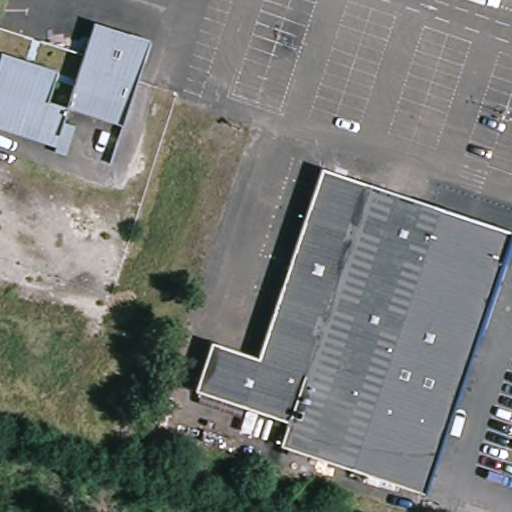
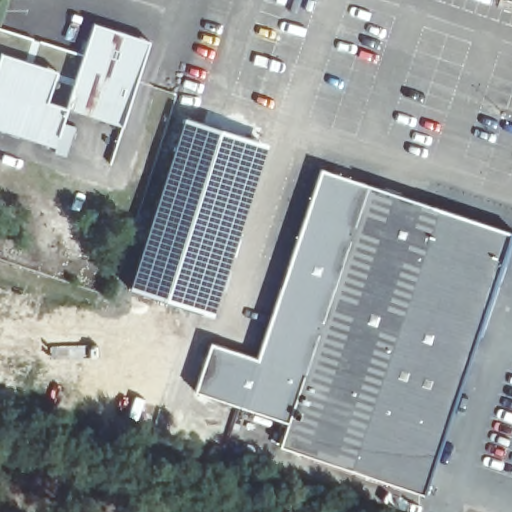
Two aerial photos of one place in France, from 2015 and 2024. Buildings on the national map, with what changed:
unchanged [(72,106),(92,41),(98,20),(121,26),(132,30),(154,37),(147,58),(127,122),(72,106)]
unchanged [(52,105),(72,110),(59,151),(29,142),(26,153),(0,145),(0,79),(3,70),(57,87),(52,105)]
new [(183,116),(270,142),(214,318),(128,288),(183,116)]
unchanged [(316,378),(305,428),(201,404),(213,352),(265,364),(322,173),(430,204),(378,395),(316,378)]
unchanged [(430,204),(512,227),(512,244),(439,494),(320,460),(298,453),(305,428),(316,378),(378,395),(430,204)]

